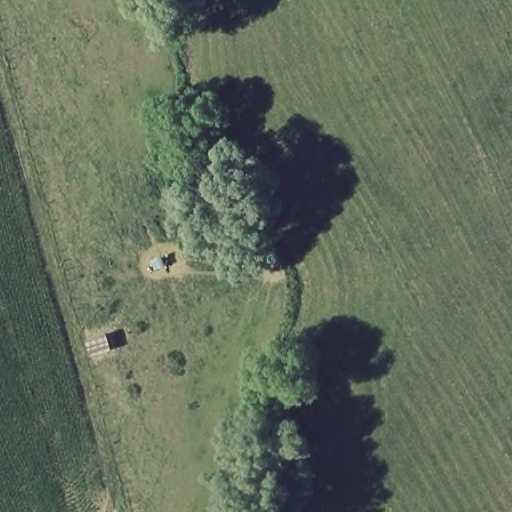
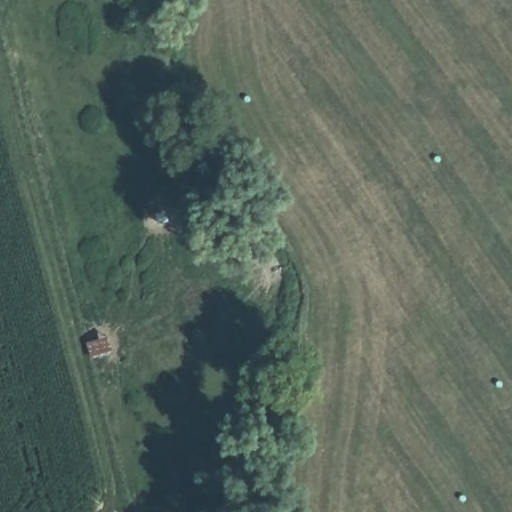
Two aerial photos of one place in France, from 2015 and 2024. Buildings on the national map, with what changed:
unchanged [(107,331),(113,352),(90,360),(83,341),(107,331)]

